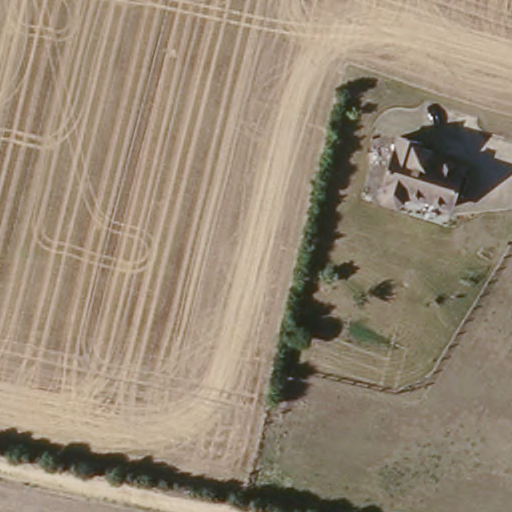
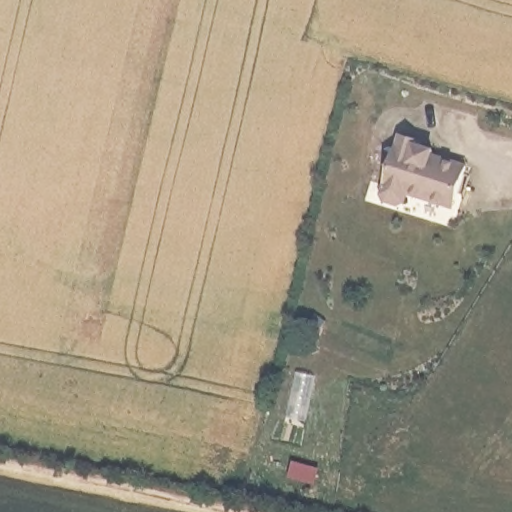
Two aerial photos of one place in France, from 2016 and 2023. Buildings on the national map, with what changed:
unchanged [(421,144),(420,149),(431,153),(430,157),(439,159),(465,168),(453,208),(407,194),(404,203),(397,206),(385,202),(382,195),(400,136),(421,144)]

